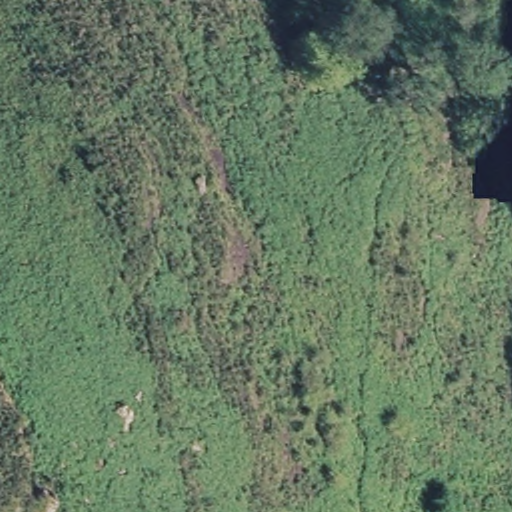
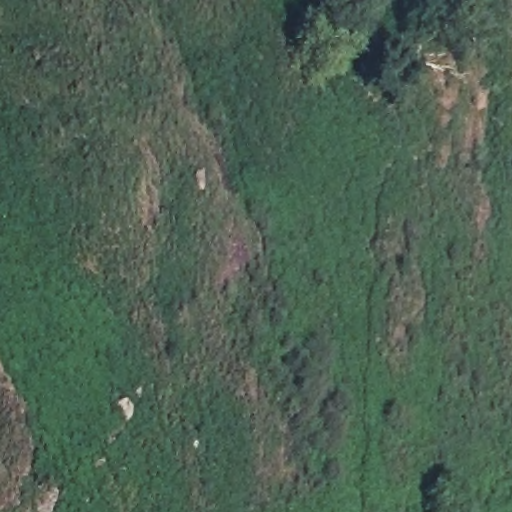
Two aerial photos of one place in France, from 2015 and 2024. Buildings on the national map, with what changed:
unchanged [(372,82),(326,37),(346,15),(392,62),(372,82)]

